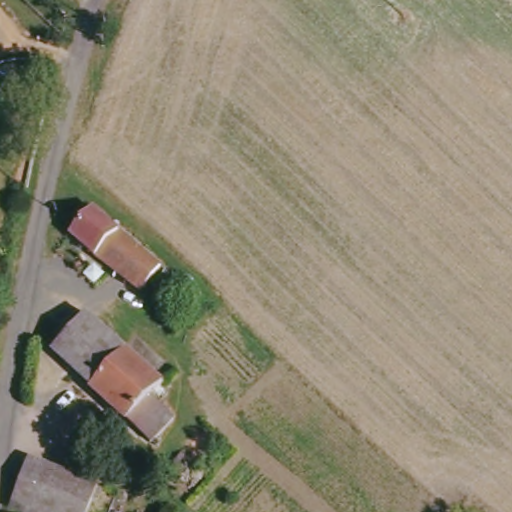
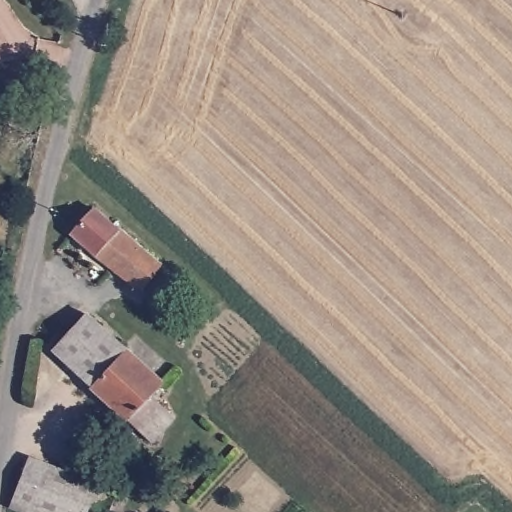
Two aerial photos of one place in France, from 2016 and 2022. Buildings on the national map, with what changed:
unchanged [(89,202),(113,225),(116,222),(157,262),(138,284),(110,267),(66,228),(89,202)]
unchanged [(48,342),(83,305),(157,373),(144,387),(121,411),(48,342)]
unchanged [(144,387),(167,409),(145,432),(121,411),(144,387)]
unchanged [(25,455),(90,480),(78,512),(32,512),(6,502),(25,455)]
unchanged [(107,503),(135,511),(134,512),(103,512),(107,503)]

